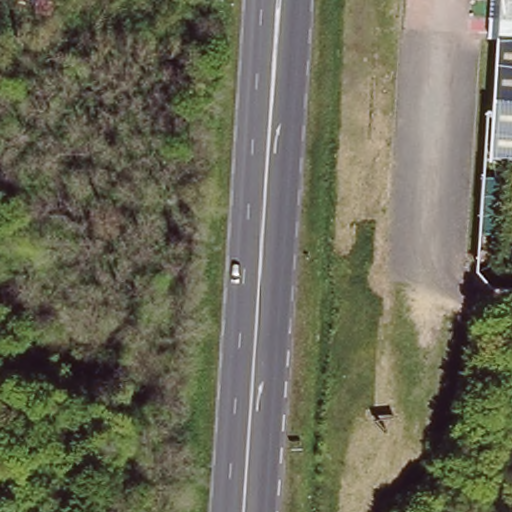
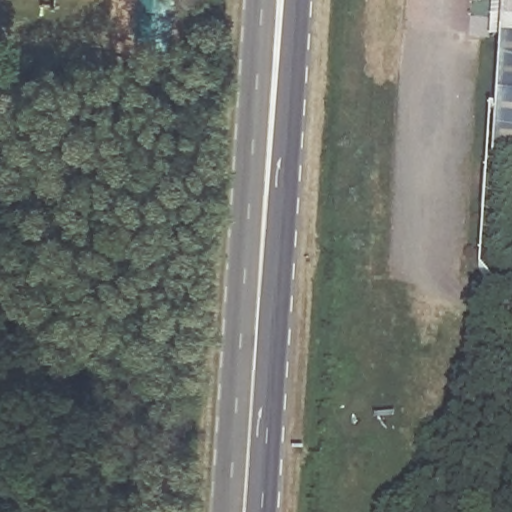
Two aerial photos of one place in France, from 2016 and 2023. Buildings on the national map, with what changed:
unchanged [(19,6),(43,9),(41,22),(18,19),(19,6)]
unchanged [(492,155),(498,34),(512,35),(512,156),(492,155)]

